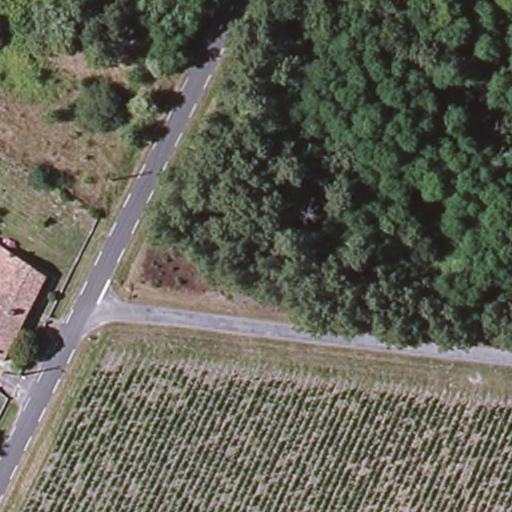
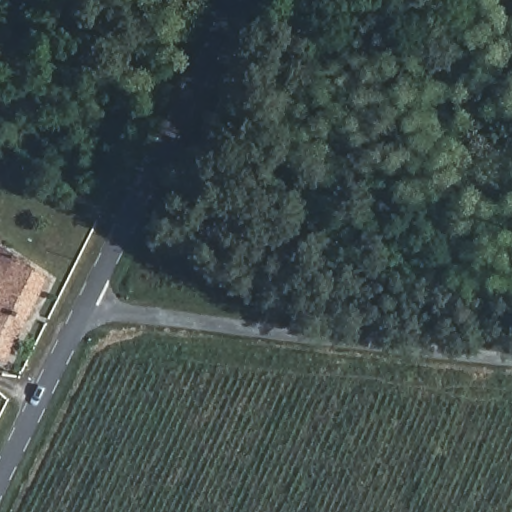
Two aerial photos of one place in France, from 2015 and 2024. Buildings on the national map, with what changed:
unchanged [(0,363),(0,255),(46,280),(3,364),(0,363)]

